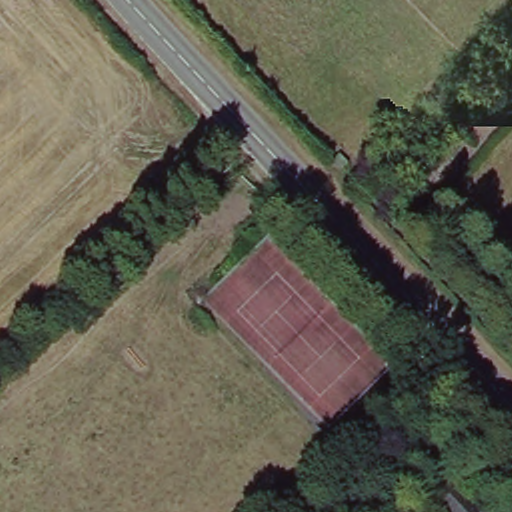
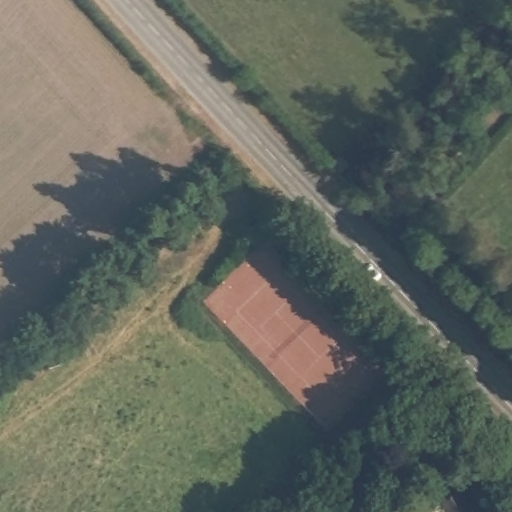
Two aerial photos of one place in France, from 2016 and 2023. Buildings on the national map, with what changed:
unchanged [(439,502),(462,481),(491,512),(449,512),(439,502)]

